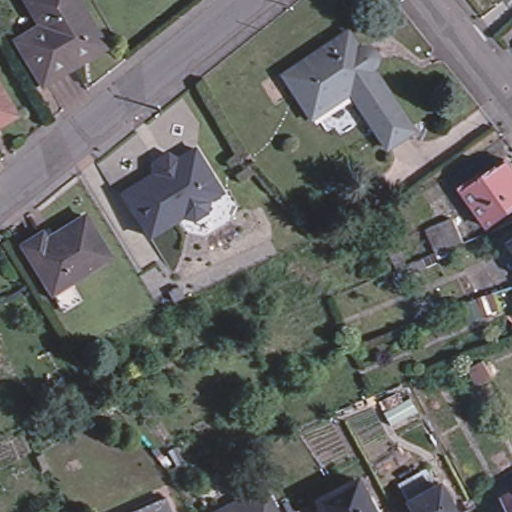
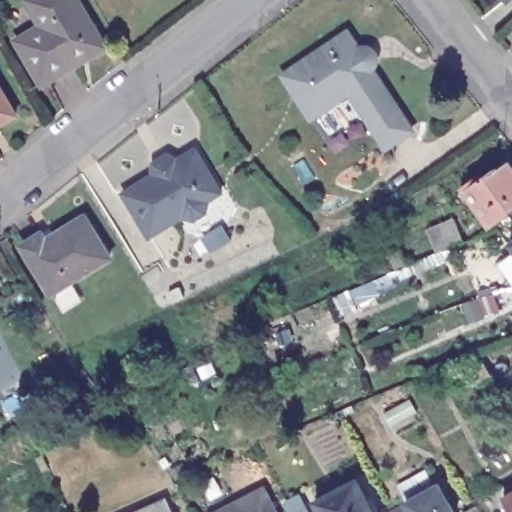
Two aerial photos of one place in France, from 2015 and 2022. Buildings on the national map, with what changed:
unchanged [(21,1),(23,0),(75,0),(105,49),(40,89),(12,42),(36,27),(21,1)]
unchanged [(507,0),(512,0),(512,2),(510,3),(507,0)]
unchanged [(406,128),(380,147),(341,93),(304,117),(286,91),(300,82),(290,66),(340,31),(351,48),(354,46),(357,46),(361,46),(364,48),(366,51),(368,54),(368,57),(368,61),(366,64),(364,66),(406,128)]
unchanged [(17,115),(0,126),(0,89),(17,115)]
unchanged [(210,170),(222,189),(207,198),(208,200),(206,208),(195,216),(186,214),(185,211),(150,233),(122,190),(153,170),(152,159),(167,150),(177,156),(195,145),(210,170)]
unchanged [(480,172),(501,156),(512,169),(512,208),(490,225),(458,183),(476,167),(480,172)]
unchanged [(41,226),(46,234),(83,209),(111,250),(52,287),(22,239),(41,226)]
unchanged [(512,237),(512,248),(507,241),(512,237)]
unchanged [(492,375),(478,383),(468,366),(482,359),(492,375)]
unchanged [(394,507),(411,497),(410,494),(443,475),(462,508),(456,512),(397,512),(394,507)]
unchanged [(375,512),(294,512),(293,509),(316,497),(355,476),(375,512)]
unchanged [(274,512),(208,512),(258,484),(274,512)]
unchanged [(512,512),(505,512),(497,499),(512,491),(512,512)]
unchanged [(158,497),(157,494),(160,492),(169,512),(125,512),(158,497)]

